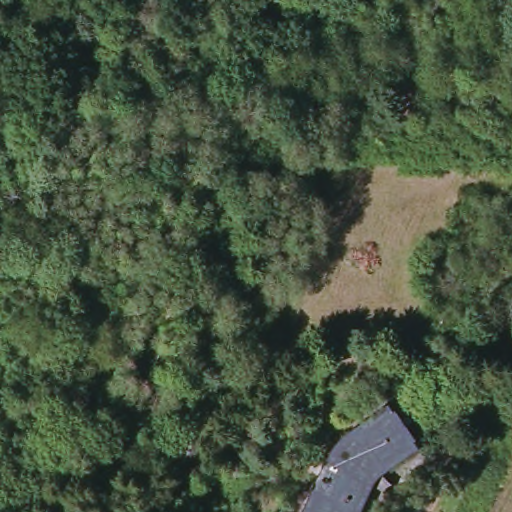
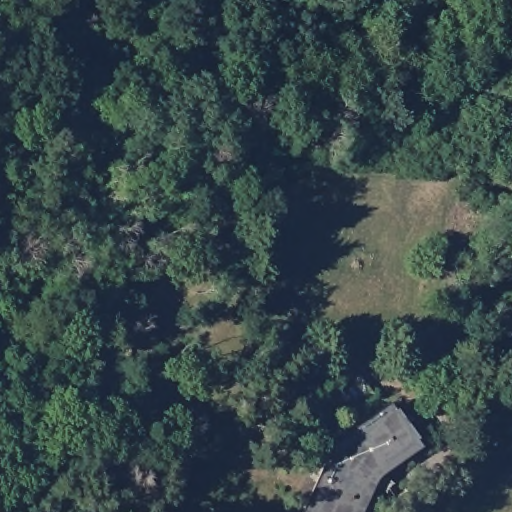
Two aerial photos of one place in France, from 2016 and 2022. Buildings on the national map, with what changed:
unchanged [(351,437),(364,428),(387,412),(395,421),(420,453),(382,484),(378,478),(371,483),(365,495),(370,499),(364,512),(317,512),(331,474),(340,458),(356,443),(351,437)]
unchanged [(317,512),(305,512),(321,476),(331,474),(317,512)]

